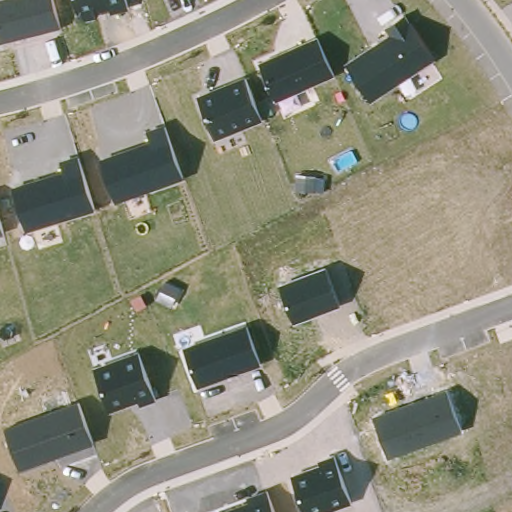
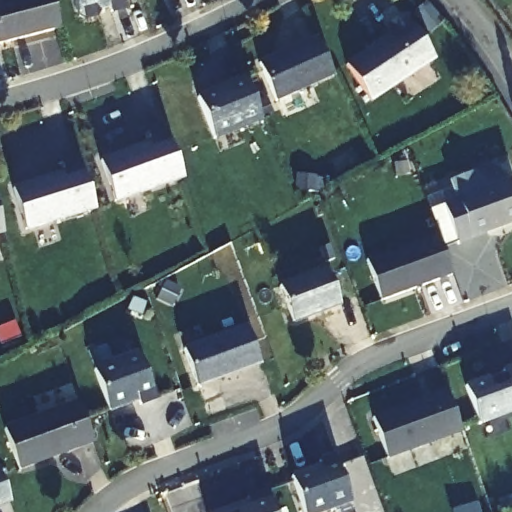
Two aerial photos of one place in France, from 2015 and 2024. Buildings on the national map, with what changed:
unchanged [(0,42),(0,0),(53,0),(60,26),(0,42)]
unchanged [(112,10),(110,7),(99,10),(97,13),(80,16),(75,0),(126,0),(128,6),(112,10)]
unchanged [(390,36),(385,27),(407,12),(437,57),(369,98),(347,60),(390,36)]
unchanged [(332,72),(275,97),(259,59),(316,35),(332,72)]
unchanged [(260,115),(215,134),(200,95),(245,76),(260,115)]
unchanged [(184,174),(113,197),(100,156),(150,138),(146,128),(164,121),(184,174)]
unchanged [(95,207),(26,228),(12,183),(63,167),(60,158),(78,153),(95,207)]
unchanged [(507,183),(512,196),(512,224),(467,240),(454,202),(507,183)]
unchanged [(0,232),(0,223),(2,231),(0,232)]
new [(435,238),(449,278),(378,303),(364,263),(435,238)]
unchanged [(326,264),(340,301),(292,319),(279,281),(326,264)]
unchanged [(246,323),(260,363),(196,387),(183,345),(246,323)]
unchanged [(137,347),(155,397),(140,402),(138,397),(108,408),(93,364),(137,347)]
new [(485,380),(485,382),(500,377),(498,373),(512,368),(512,414),(475,427),(461,389),(485,380)]
unchanged [(460,428),(387,454),(374,414),(447,390),(460,428)]
unchanged [(80,396),(95,440),(17,466),(2,424),(80,396)]
unchanged [(352,500),(316,512),(306,512),(292,474),(320,463),(319,456),(335,451),(352,500)]
unchanged [(273,512),(219,512),(250,501),(249,495),(265,490),(273,512)]

